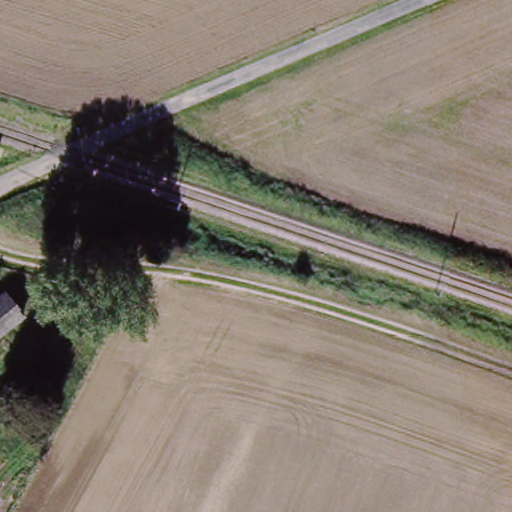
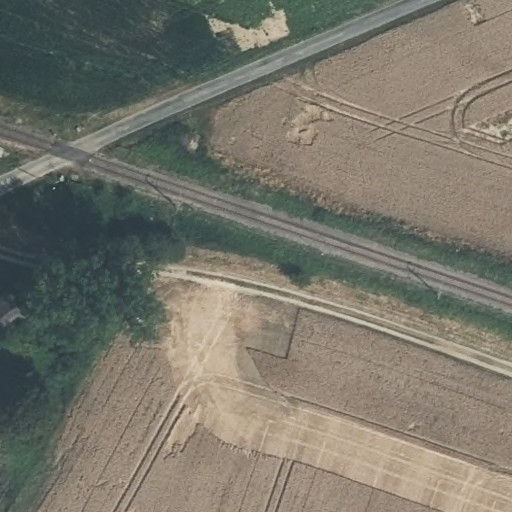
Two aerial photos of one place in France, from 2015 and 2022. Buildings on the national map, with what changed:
unchanged [(47,109),(61,114),(57,127),(44,123),(47,109)]
unchanged [(0,324),(0,292),(16,310),(0,324)]

